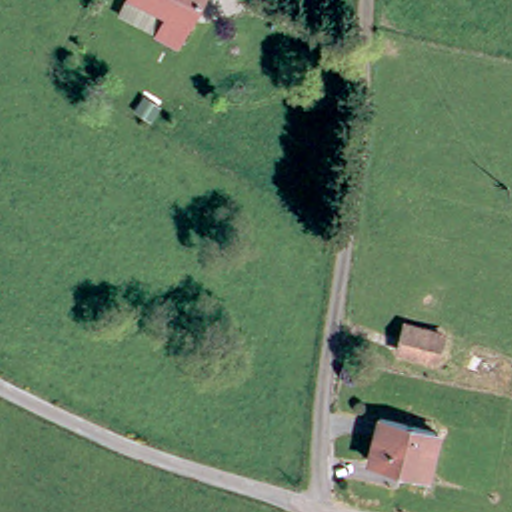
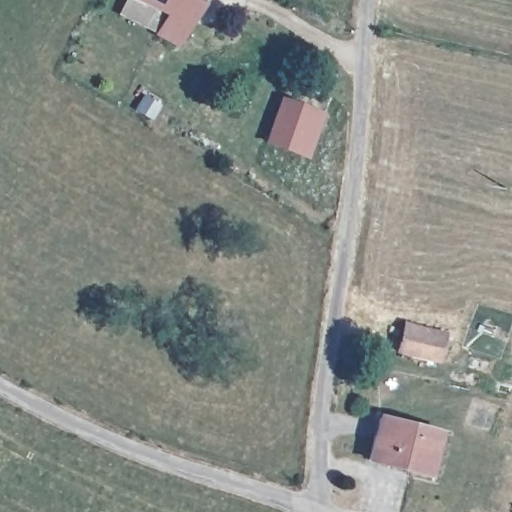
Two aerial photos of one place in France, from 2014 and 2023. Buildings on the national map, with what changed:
unchanged [(130,0),(208,0),(186,43),(164,31),(125,9),(130,0)]
new [(264,141),(280,96),(326,113),(309,158),(264,141)]
unchanged [(407,328),(447,335),(443,364),(401,356),(407,328)]
unchanged [(374,462),(382,421),(441,437),(431,478),(374,462)]

